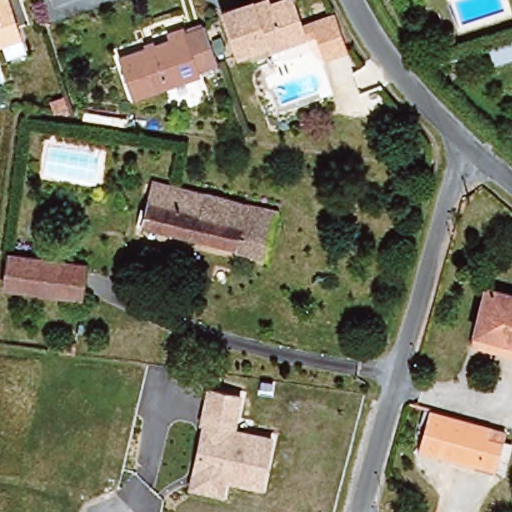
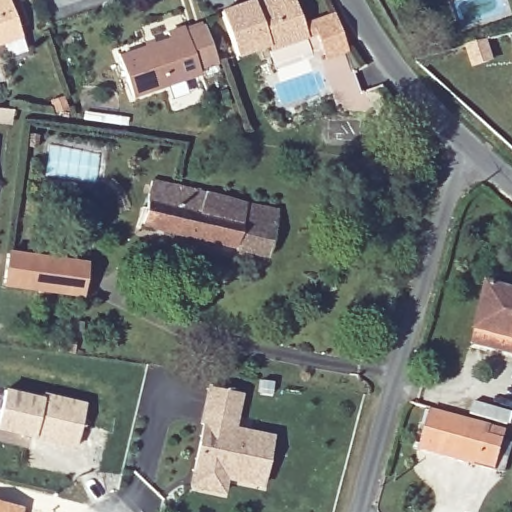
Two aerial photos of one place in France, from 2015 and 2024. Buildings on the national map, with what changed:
unchanged [(20,39),(0,46),(0,0),(7,0),(7,1),(20,39)]
unchanged [(305,38),(268,50),(267,45),(235,55),(221,10),(254,0),(271,0),(271,2),(280,0),(294,0),(305,38)]
unchanged [(164,84),(132,95),(119,55),(170,38),(167,31),(184,26),(185,30),(204,24),(216,61),(199,67),(200,72),(197,73),(205,98),(172,109),(164,84)]
unchanged [(142,225),(150,196),(166,200),(170,183),(246,202),(245,204),(235,247),(142,225)]
unchanged [(235,247),(245,204),(276,212),(265,255),(235,247)]
unchanged [(3,285),(7,253),(87,263),(82,296),(3,285)]
unchanged [(476,332),(475,331),(487,285),(512,291),(512,354),(473,344),(476,332)]
unchanged [(206,385),(241,392),(235,425),(272,433),(262,489),(225,481),(223,495),(186,487),(206,385)]
new [(42,398),(43,393),(86,404),(76,446),(0,428),(0,409),(5,389),(42,398)]
unchanged [(495,471),(420,450),(430,410),(490,426),(487,436),(503,440),(495,471)]
new [(22,512),(0,512),(0,501),(24,507),(22,512)]

